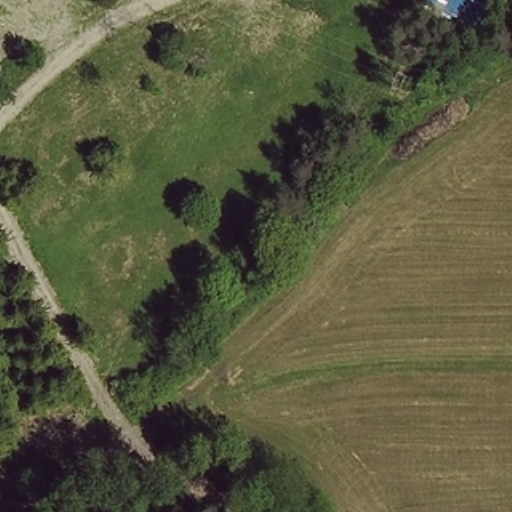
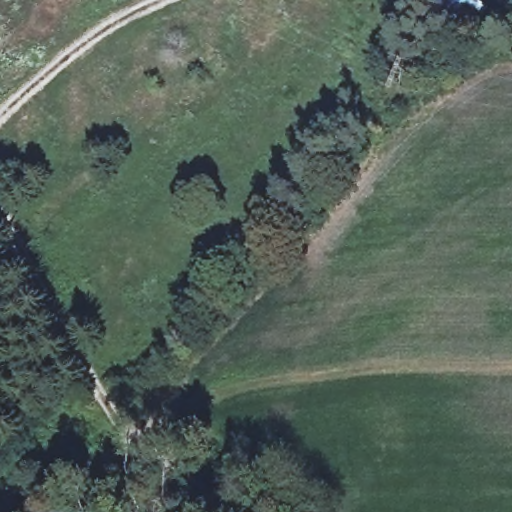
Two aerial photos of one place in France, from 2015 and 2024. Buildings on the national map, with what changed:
unchanged [(488,6),(472,39),(427,17),(435,0),(477,0),(488,6)]

